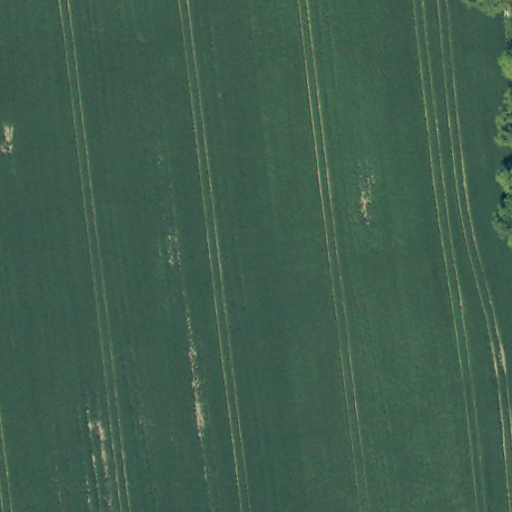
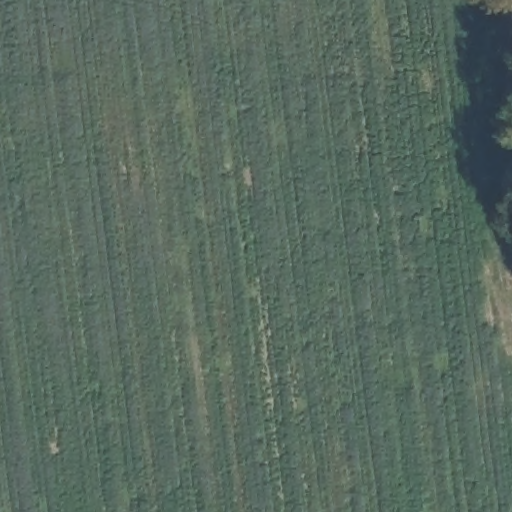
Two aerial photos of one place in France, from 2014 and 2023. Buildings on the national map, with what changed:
[]

